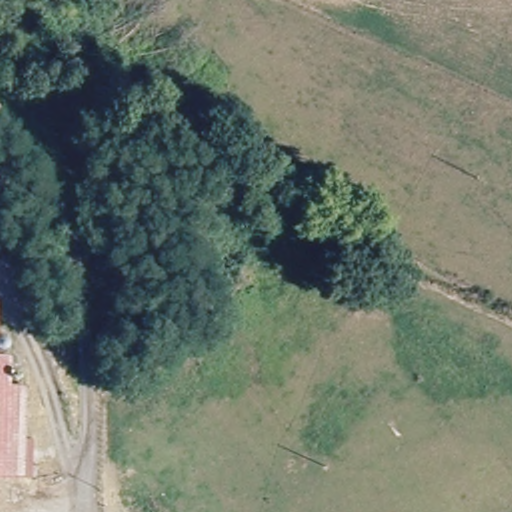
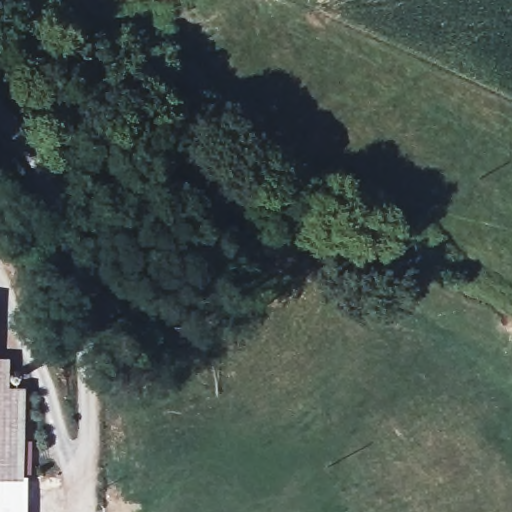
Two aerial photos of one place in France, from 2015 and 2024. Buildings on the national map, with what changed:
unchanged [(9,379),(9,391),(22,391),(25,391),(25,393),(25,481),(0,481),(0,362),(9,362),(9,379)]
new [(26,512),(0,512),(0,481),(25,481),(26,512)]

